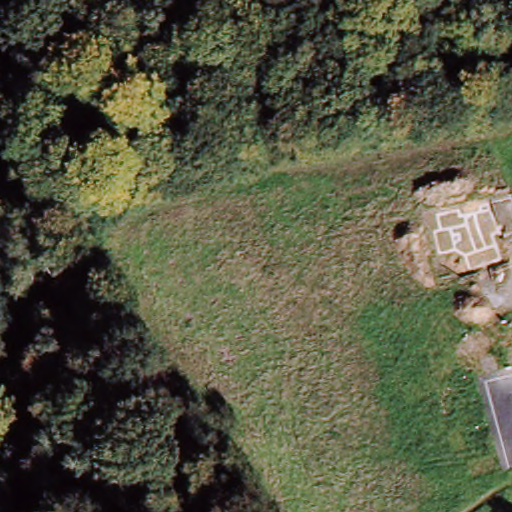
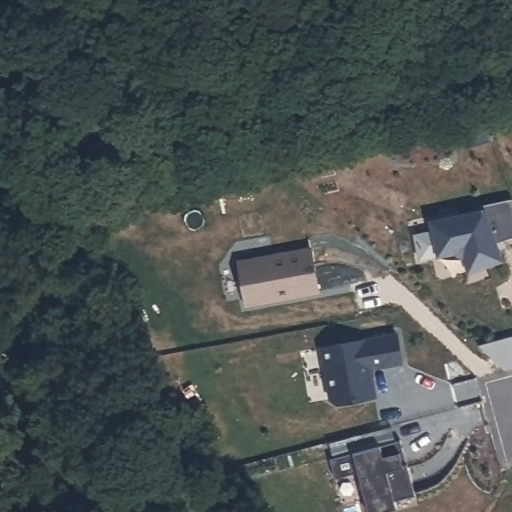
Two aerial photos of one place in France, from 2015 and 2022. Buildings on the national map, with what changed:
new [(512,198),(512,238),(499,242),(505,260),(470,272),(463,262),(464,257),(454,255),(439,258),(429,220),(484,208),(482,204),(512,197),(512,198)]
new [(321,295),(245,307),(238,258),(311,246),(321,295)]
new [(398,332),(404,363),(373,370),(378,397),(336,403),(330,401),(328,395),(320,397),(318,387),(328,384),(321,345),(398,332)]
new [(395,501),(397,508),(383,512),(369,512),(358,472),(335,478),(329,458),(401,440),(404,452),(399,453),(403,466),(407,465),(415,496),(395,501)]

